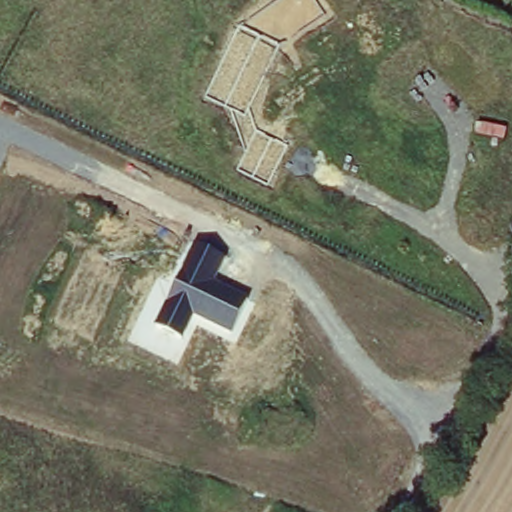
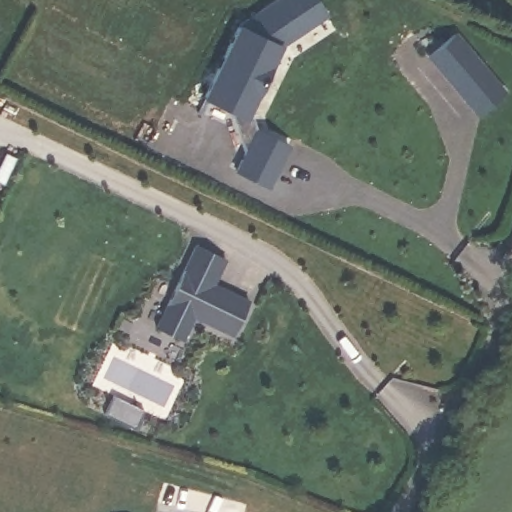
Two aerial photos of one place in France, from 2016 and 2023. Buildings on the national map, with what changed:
new [(327,12),(279,44),(251,112),(259,133),(288,146),(270,187),(237,172),(245,147),(233,110),(205,95),(238,27),(274,0),(318,0),(327,12)]
new [(508,91),(480,117),(429,57),(457,31),(508,91)]
unchanged [(233,336),(195,318),(182,341),(155,328),(197,244),(226,258),(213,283),(249,300),(233,336)]

